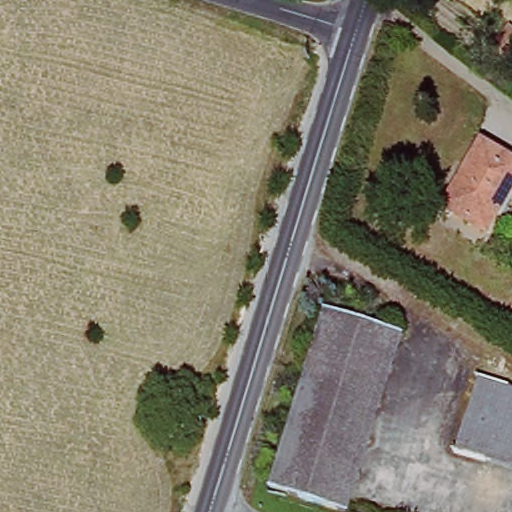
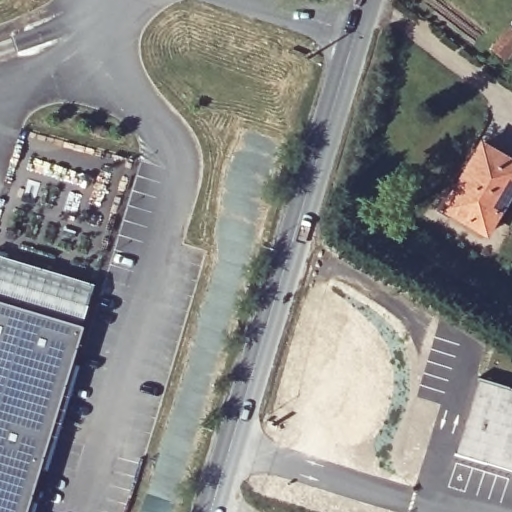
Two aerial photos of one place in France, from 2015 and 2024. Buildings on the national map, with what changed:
unchanged [(507,25),(512,30),(512,44),(500,57),(488,45),(507,25)]
unchanged [(451,214),(467,188),(461,184),(485,148),(512,165),(512,196),(486,236),(451,214)]
new [(95,285),(83,326),(0,300),(0,257),(95,285)]
new [(26,512),(0,512),(0,300),(83,326),(26,512)]
demolished [(281,466),(326,312),(403,336),(356,493),(281,466)]
unchanged [(474,385),(512,396),(512,474),(452,456),(474,385)]
demolished [(356,493),(350,512),(333,512),(273,493),(281,466),(356,493)]

